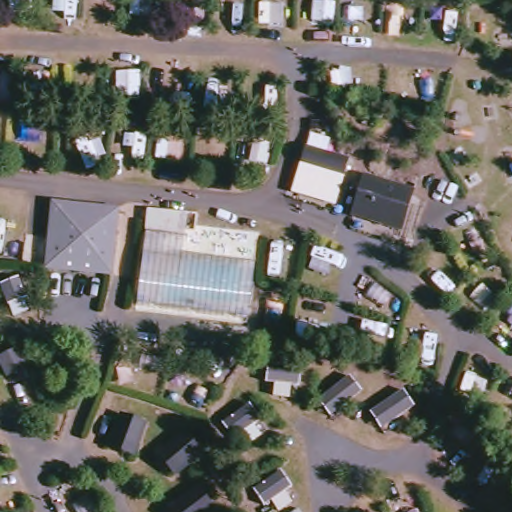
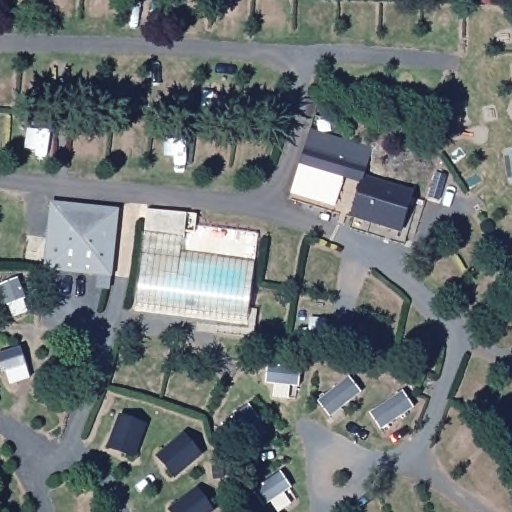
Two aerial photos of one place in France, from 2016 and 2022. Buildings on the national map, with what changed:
unchanged [(347,160),(333,207),(288,195),(302,146),(347,160)]
unchanged [(413,190),(400,234),(348,218),(361,176),(413,190)]
unchanged [(118,211),(100,272),(39,254),(57,193),(118,211)]
unchanged [(141,232),(143,209),(183,213),(182,235),(141,232)]
unchanged [(119,402),(150,412),(140,447),(105,439),(119,402)]
unchanged [(192,423),(212,449),(180,475),(155,448),(192,423)]
unchanged [(215,512),(169,512),(167,508),(197,488),(215,512)]

